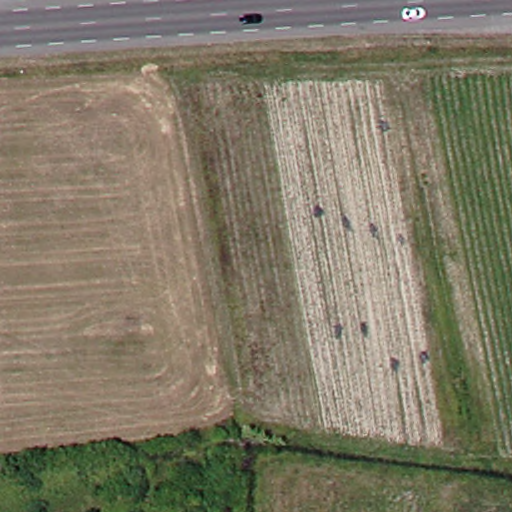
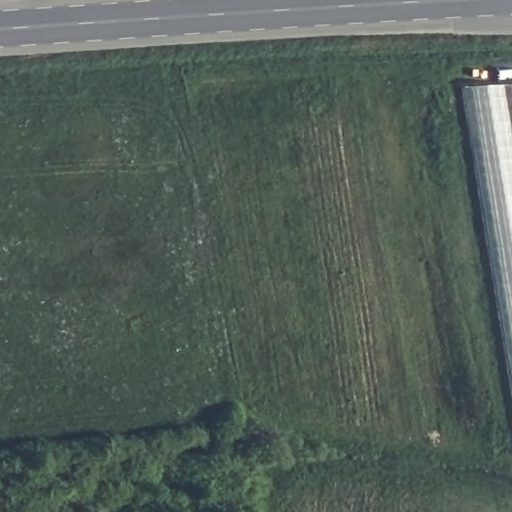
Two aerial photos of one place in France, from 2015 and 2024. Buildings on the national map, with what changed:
new [(512,85),(512,388),(466,90),(512,85)]

